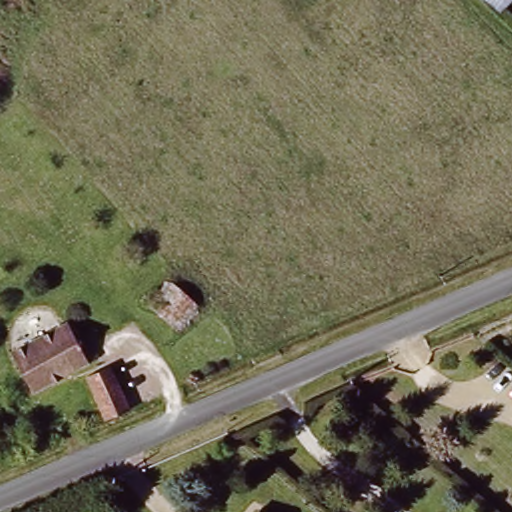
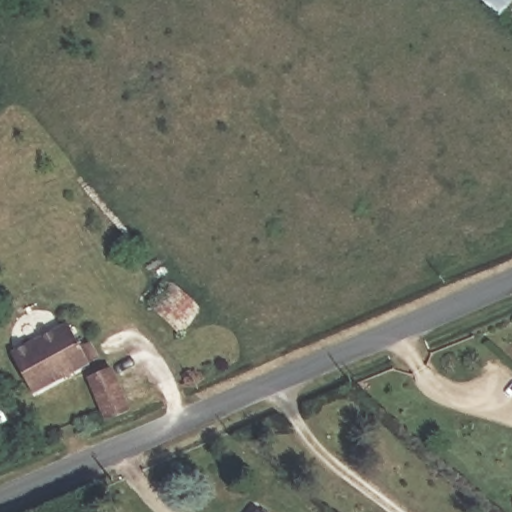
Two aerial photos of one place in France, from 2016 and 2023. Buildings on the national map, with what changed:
unchanged [(504,20),(481,0),(512,0),(512,10),(504,20)]
unchanged [(203,305),(178,332),(146,308),(171,279),(203,305)]
unchanged [(38,388),(18,350),(73,324),(78,331),(88,327),(101,360),(38,388)]
unchanged [(129,408),(114,415),(112,410),(93,372),(115,361),(131,401),(128,402),(129,408)]

